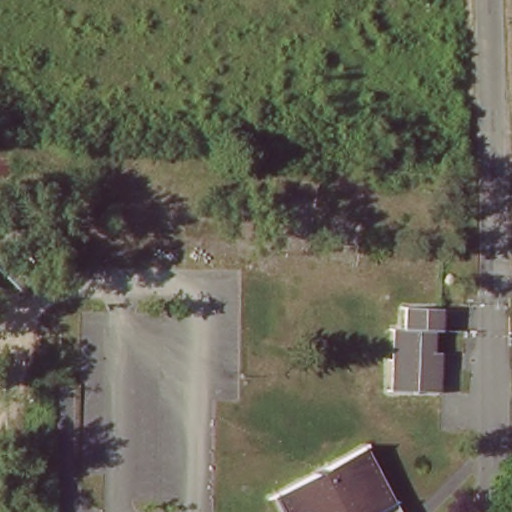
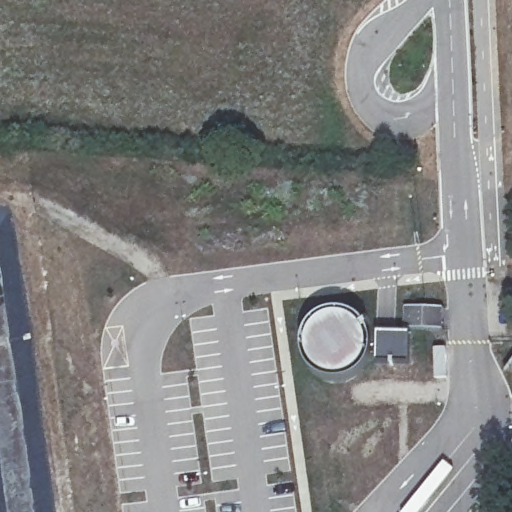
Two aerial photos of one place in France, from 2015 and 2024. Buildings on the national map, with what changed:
demolished [(394,323),(411,325),(413,303),(448,308),(446,330),(437,329),(434,349),(432,370),(443,371),(440,393),(401,389),(405,352),(391,350),(394,323)]
new [(403,330),(403,306),(444,308),(443,330),(403,330)]
new [(375,363),(376,333),(410,333),(411,364),(375,363)]
unchanged [(445,351),(443,371),(432,370),(434,349),(445,351)]
demolished [(372,449),(398,500),(402,512),(288,512),(280,494),(372,449)]

